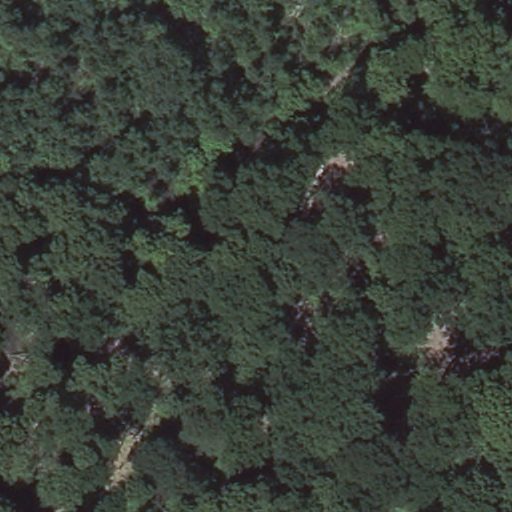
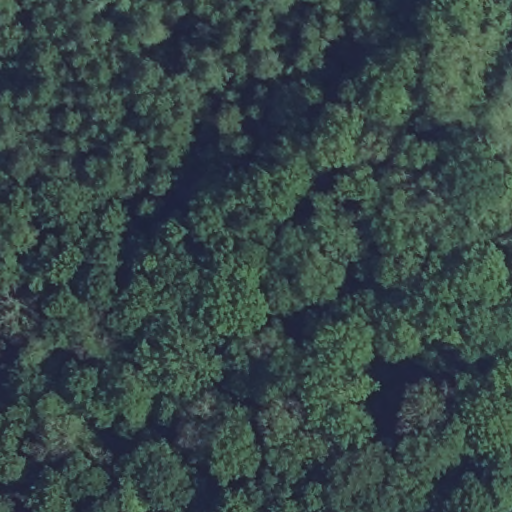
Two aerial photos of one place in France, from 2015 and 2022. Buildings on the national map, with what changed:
[]

